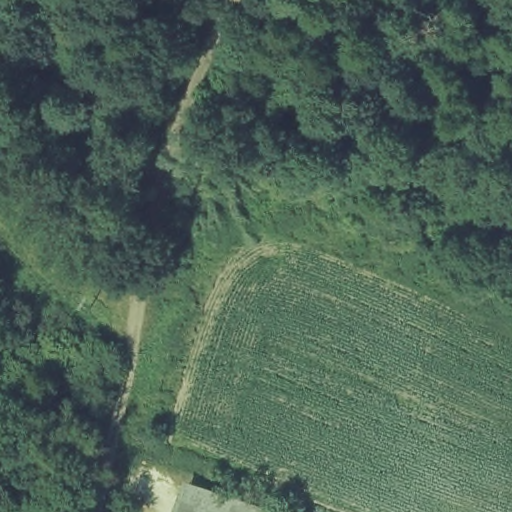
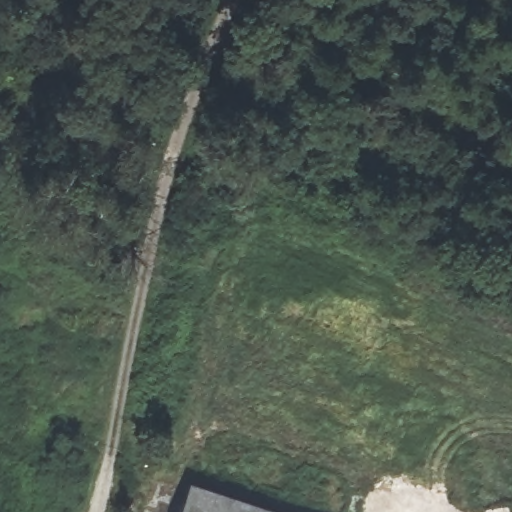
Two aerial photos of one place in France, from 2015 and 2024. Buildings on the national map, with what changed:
unchanged [(267,512),(181,512),(189,487),(267,512)]

